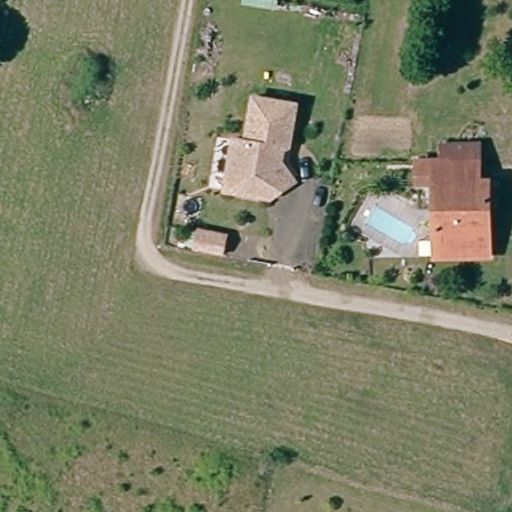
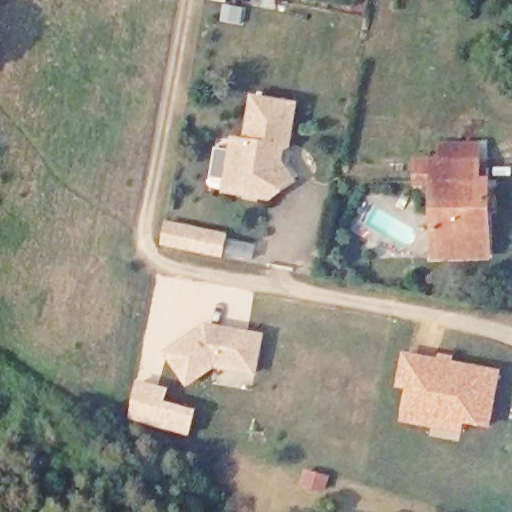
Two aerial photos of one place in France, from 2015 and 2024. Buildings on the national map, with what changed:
unchanged [(291,190),(266,207),(222,199),(232,148),(243,150),(251,107),(293,114),(285,155),(281,158),(275,157),(273,164),(291,190)]
unchanged [(482,178),(483,253),(431,253),(428,183),(411,183),(412,160),(431,159),(431,143),(468,143),(469,158),(470,177),(482,178)]
new [(162,245),(167,220),(228,233),(223,258),(162,245)]
new [(162,351),(205,322),(265,334),(256,375),(214,368),(187,387),(162,351)]
new [(480,428),(463,424),(461,432),(400,422),(402,410),(405,390),(396,388),(403,351),(439,357),(439,353),(456,356),(455,361),(501,370),(491,429),(480,428)]
new [(131,417),(141,380),(169,388),(166,401),(197,409),(190,433),(131,417)]

